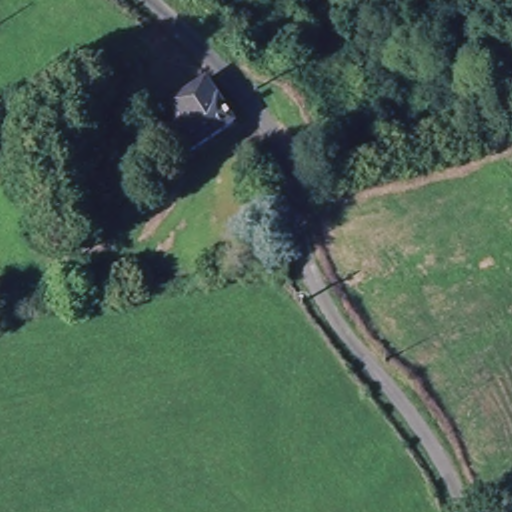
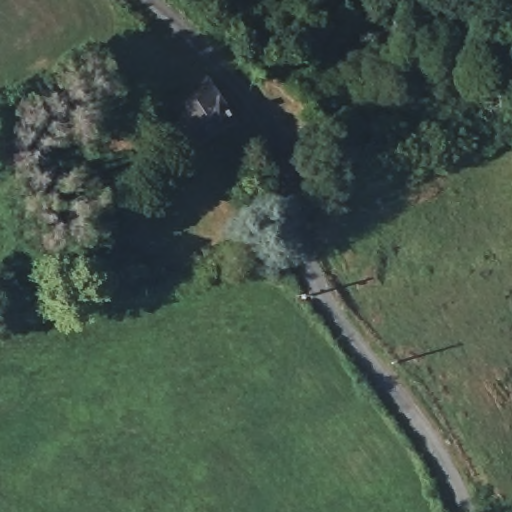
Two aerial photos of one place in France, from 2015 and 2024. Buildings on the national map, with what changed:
unchanged [(226,126),(228,136),(176,157),(171,147),(168,132),(187,126),(181,104),(216,91),(226,126)]

